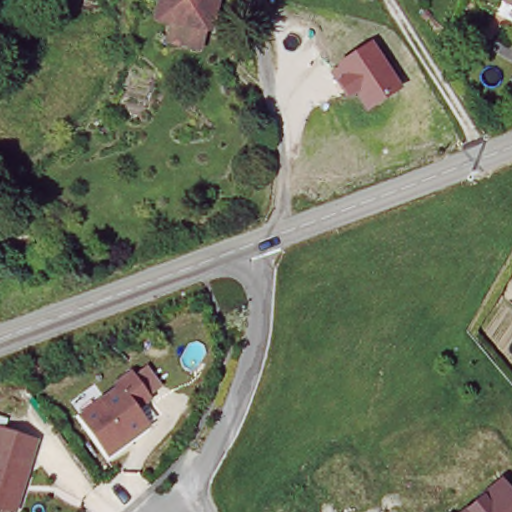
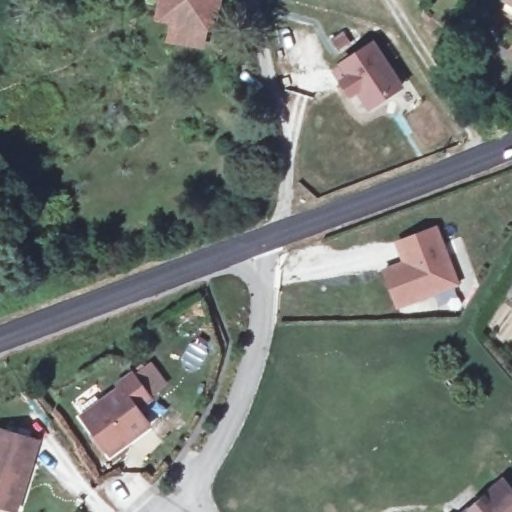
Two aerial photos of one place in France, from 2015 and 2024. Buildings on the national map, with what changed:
unchanged [(171,22),(166,21),(169,0),(213,0),(206,28),(201,27),(198,46),(167,40),(171,22)]
unchanged [(512,0),(512,4),(506,0),(512,0)]
unchanged [(402,88),(366,112),(354,95),(349,99),(332,71),(339,67),(336,62),(373,42),(402,88)]
new [(379,270),(400,262),(393,242),(437,226),(458,286),(397,309),(379,270)]
unchanged [(120,391),(118,387),(132,377),(150,401),(136,411),(149,427),(109,457),(82,419),(120,391)]
unchanged [(0,505),(0,427),(36,438),(14,509),(0,505)]
unchanged [(504,482),(512,491),(512,512),(464,512),(504,482)]

